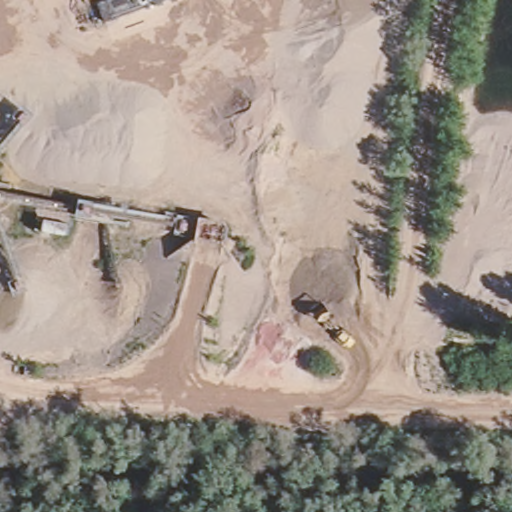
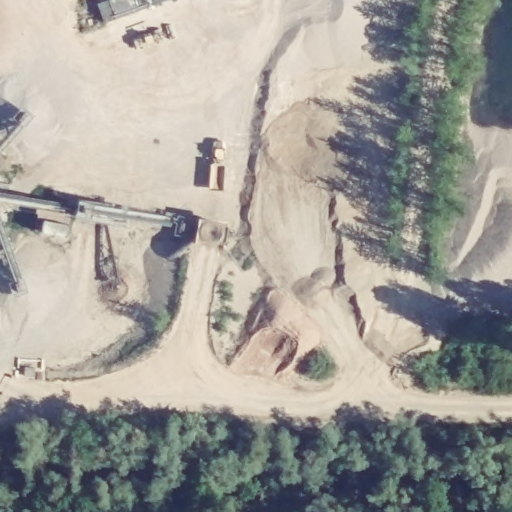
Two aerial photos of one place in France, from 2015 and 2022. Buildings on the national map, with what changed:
unchanged [(109,20),(102,1),(105,0),(166,0),(109,20)]

